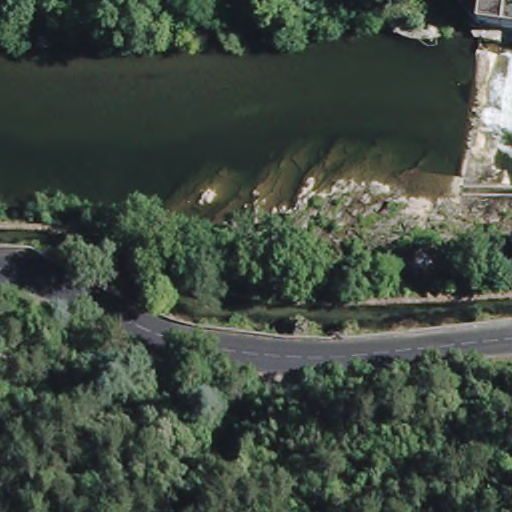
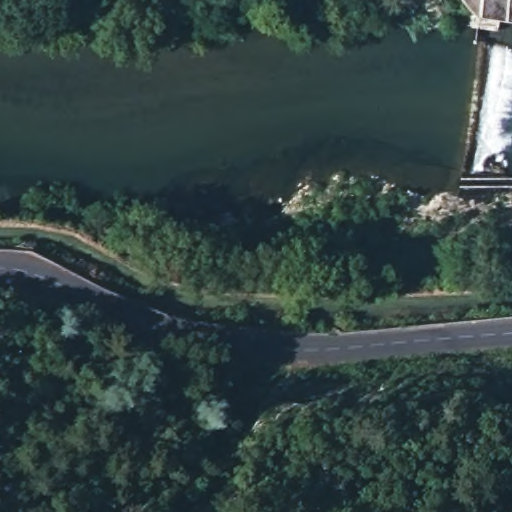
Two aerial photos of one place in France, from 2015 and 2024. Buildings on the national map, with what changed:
unchanged [(485,14),(475,10),(476,0),(512,0),(512,18),(500,16),(485,14)]

